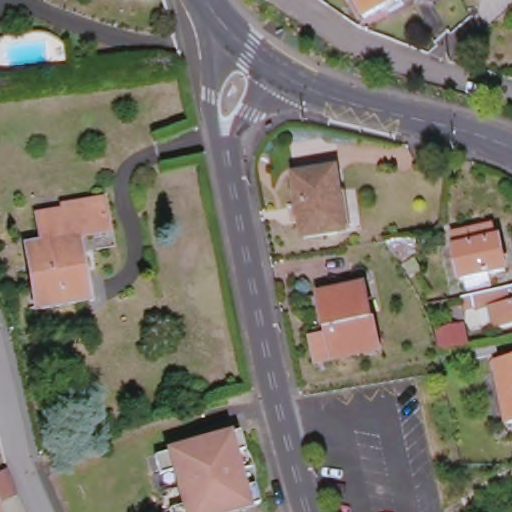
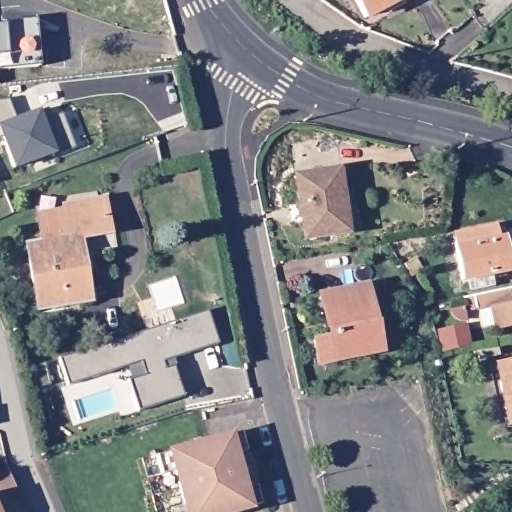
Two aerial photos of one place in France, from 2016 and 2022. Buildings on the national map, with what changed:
unchanged [(408,0),(365,23),(352,0),(408,0)]
new [(0,136),(0,137),(0,100),(8,100),(15,118),(39,109),(40,112),(46,109),(50,120),(61,114),(74,148),(13,169),(0,136)]
unchanged [(337,171),(343,213),(338,214),(341,234),(304,239),(295,177),(337,171)]
unchanged [(25,244),(41,241),(37,212),(65,208),(65,204),(107,198),(115,234),(82,238),(91,302),(35,311),(25,244)]
unchanged [(470,297),(468,281),(460,282),(451,245),(456,245),(453,231),(496,223),(502,234),(511,271),(495,275),(497,290),(470,297)]
unchanged [(413,238),(425,269),(405,278),(388,240),(413,238)]
unchanged [(363,288),(376,352),(320,363),(315,340),(329,337),(321,296),(363,288)]
unchanged [(512,288),(512,326),(495,330),(492,308),(475,311),(461,320),(452,309),(470,300),(512,288)]
new [(212,309),(223,342),(167,359),(170,366),(178,363),(188,395),(155,405),(145,374),(162,369),(158,356),(85,379),(77,352),(212,309)]
new [(465,325),(469,346),(442,352),(438,330),(465,325)]
unchanged [(496,346),(499,355),(479,359),(477,350),(496,346)]
unchanged [(512,363),(512,423),(509,424),(497,366),(512,363)]
unchanged [(240,433),(259,505),(235,512),(171,512),(170,509),(183,506),(174,471),(160,475),(155,456),(240,433)]

